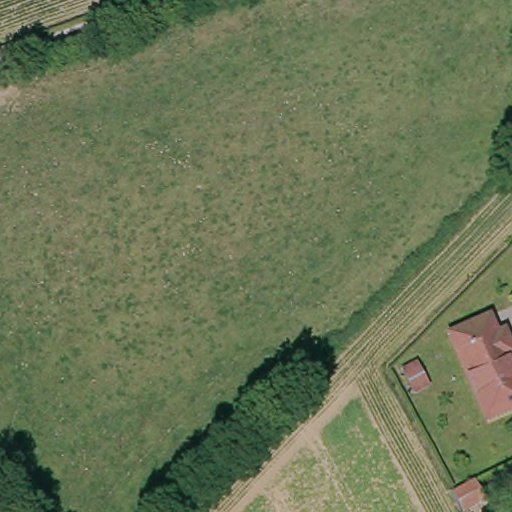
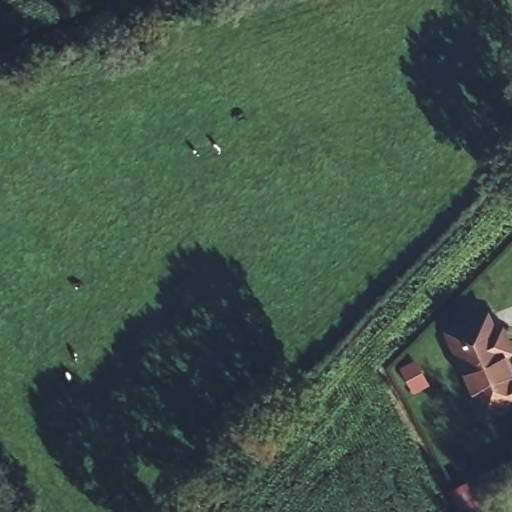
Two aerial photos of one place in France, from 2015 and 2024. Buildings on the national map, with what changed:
unchanged [(497,316),(505,333),(511,330),(512,333),(512,412),(493,420),(455,333),(497,316)]
unchanged [(484,501),(463,512),(462,512),(453,493),(473,483),(484,501)]

